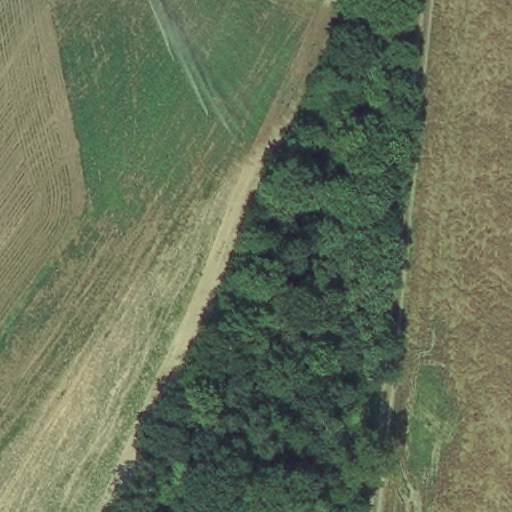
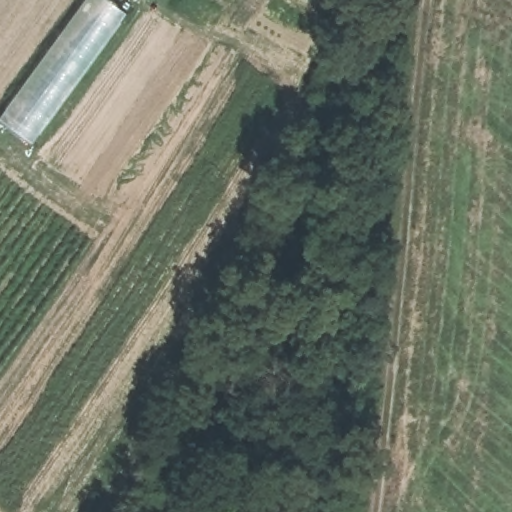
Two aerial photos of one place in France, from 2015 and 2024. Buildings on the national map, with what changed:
new [(84,0),(109,0),(126,13),(58,108),(29,141),(0,121),(0,116),(84,0)]

